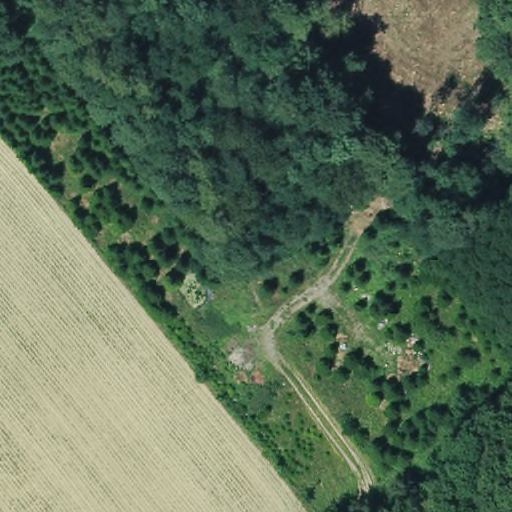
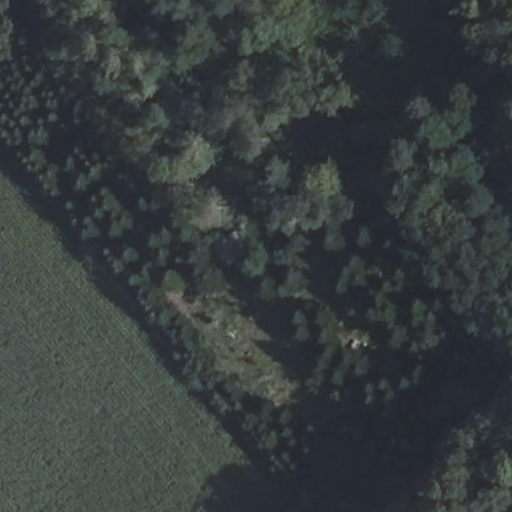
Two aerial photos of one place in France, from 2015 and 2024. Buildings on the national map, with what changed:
[]

